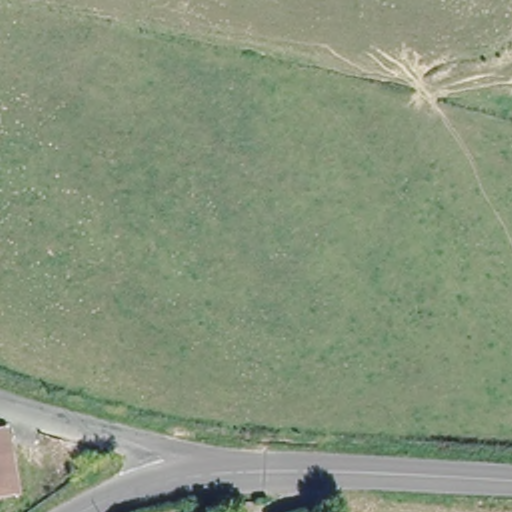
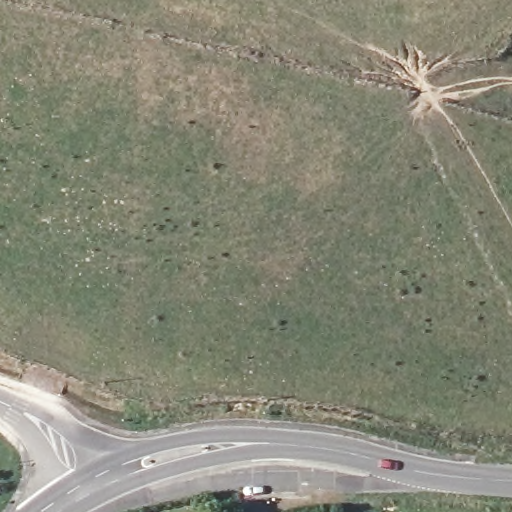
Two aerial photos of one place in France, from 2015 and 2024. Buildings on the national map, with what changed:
demolished [(23,487),(0,493),(0,425),(10,422),(23,487)]

